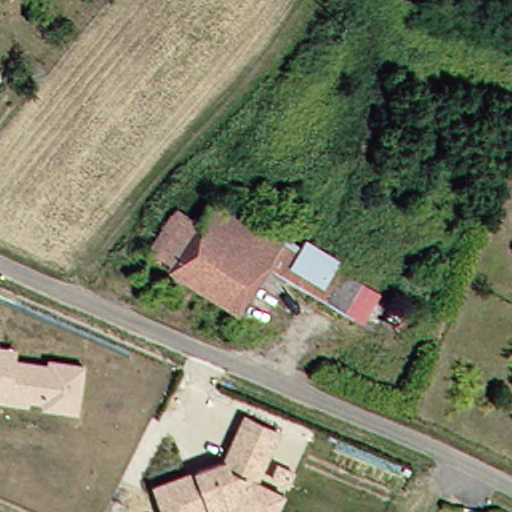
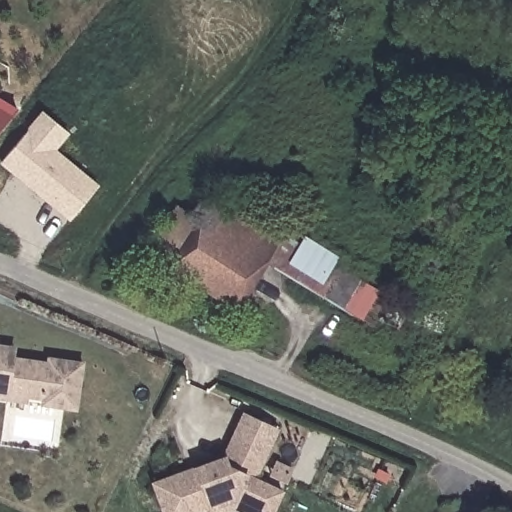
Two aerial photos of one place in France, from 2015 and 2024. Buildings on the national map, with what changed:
new [(0,131),(0,97),(19,108),(0,131)]
new [(44,112),(68,132),(54,149),(99,186),(72,219),(3,163),(44,112)]
unchanged [(167,259),(145,245),(172,197),(179,202),(197,213),(211,191),(232,204),(223,223),(231,231),(227,237),(250,251),(245,263),(254,269),(235,299),(167,259)]
unchanged [(346,306),(264,254),(254,269),(245,263),(250,251),(227,237),(231,231),(223,223),(232,204),(297,245),(306,232),(337,251),(333,258),(364,278),(382,290),(370,321),(346,306)]
unchanged [(14,344),(13,350),(13,354),(46,358),(47,353),(82,358),(76,404),(43,399),(0,394),(0,342),(14,344)]
unchanged [(223,456),(243,412),(277,427),(255,476),(268,482),(257,506),(235,496),(209,506),(193,512),(164,512),(152,482),(223,456)]
unchanged [(282,488),(272,512),(246,512),(235,507),(221,512),(212,512),(209,506),(235,496),(257,506),(268,482),(282,488)]

